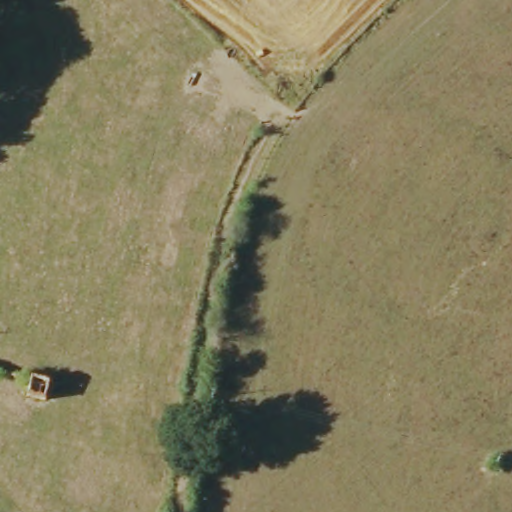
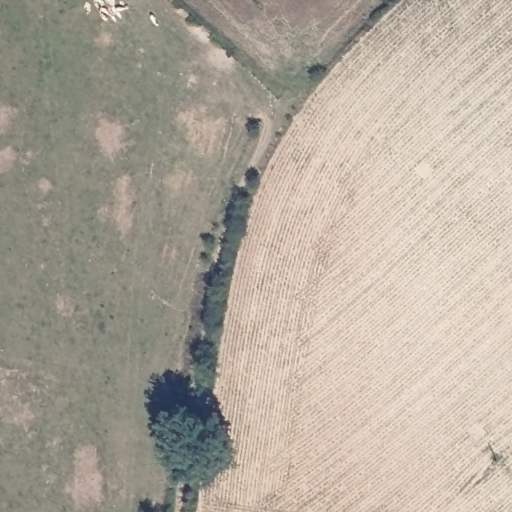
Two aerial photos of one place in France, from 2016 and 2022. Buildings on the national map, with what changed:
unchanged [(45,381),(42,402),(22,398),(27,377),(45,381)]

